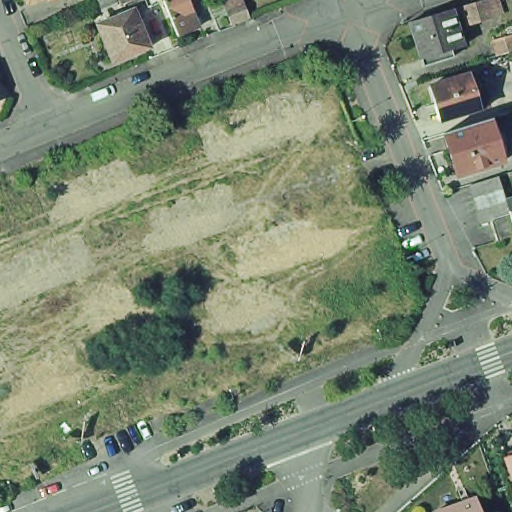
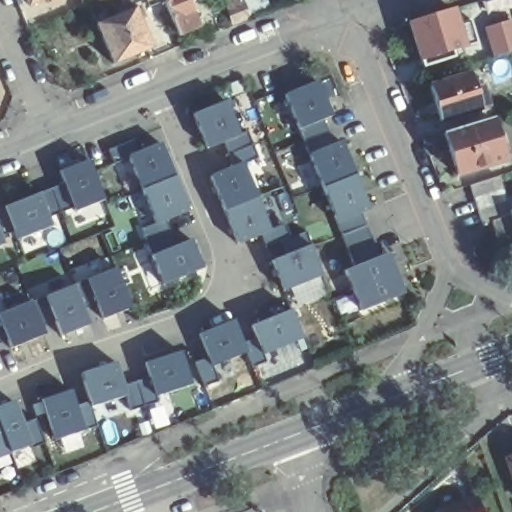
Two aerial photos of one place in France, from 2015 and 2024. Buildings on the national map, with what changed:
unchanged [(26,0),(38,0),(28,4),(26,0)]
unchanged [(98,0),(118,0),(101,7),(98,0)]
unchanged [(120,0),(130,0),(121,3),(120,0)]
unchanged [(164,1),(148,7),(145,0),(189,0),(200,26),(178,35),(164,1)]
unchanged [(242,0),(248,16),(232,22),(224,1),(229,0),(242,0)]
unchanged [(464,5),(482,0),(485,0),(490,15),(468,21),(464,5)]
unchanged [(113,63),(97,25),(135,9),(140,6),(142,12),(137,15),(150,47),(113,63)]
unchanged [(451,50),(453,56),(423,66),(410,22),(451,9),(463,46),(451,50)]
unchanged [(512,35),(512,51),(496,56),(492,41),(512,35)]
unchanged [(440,120),(430,86),(470,74),(475,88),(482,86),(488,106),(440,120)]
new [(359,311),(343,271),(352,267),(347,251),(340,233),(336,223),(310,154),(305,142),(299,130),(286,94),(317,82),(331,116),(321,119),(327,132),(332,145),(341,141),(369,210),(360,214),(364,224),(370,241),(377,257),(387,253),(402,294),(359,311)]
demolished [(499,95),(512,91),(512,112),(505,114),(499,95)]
new [(310,244),(321,276),(282,291),(271,259),(286,255),(280,242),(264,248),(260,236),(238,244),(210,176),(232,167),(227,154),(222,143),(205,150),(191,116),(226,101),(239,134),(247,131),(257,158),(243,163),(270,230),(285,224),(290,237),(305,232),(310,244)]
unchanged [(457,180),(444,137),(491,123),(505,165),(457,180)]
new [(189,240),(201,269),(161,284),(150,256),(145,242),(140,229),(155,224),(128,157),(115,162),(109,150),(132,140),(138,151),(161,143),(189,212),(166,221),(170,232),(175,245),(189,240)]
new [(72,207),(60,212),(48,217),(52,226),(17,240),(12,230),(0,235),(3,244),(0,245),(0,209),(3,207),(38,195),(50,189),(63,185),(59,171),(87,161),(102,201),(74,212),(72,207)]
unchanged [(478,210),(475,198),(470,184),(498,175),(500,180),(502,189),(505,198),(512,196),(512,235),(497,240),(491,220),(482,223),(478,210)]
new [(101,319),(95,303),(81,307),(88,325),(60,337),(53,320),(40,325),(43,335),(9,348),(6,341),(0,343),(0,315),(31,302),(45,297),(74,284),(85,280),(116,269),(130,307),(101,319)]
new [(262,354),(265,361),(251,366),(246,353),(211,366),(217,381),(204,386),(195,362),(207,358),(198,334),(232,320),(241,341),(255,336),(250,325),(290,310),(300,339),(262,354)]
new [(70,391),(75,405),(89,401),(81,373),(116,362),(124,386),(136,381),(147,377),(143,363),(180,351),(190,385),(155,396),(157,402),(130,410),(126,397),(91,408),(95,427),(83,432),(54,442),(40,401),(70,391)]
new [(0,457),(0,406),(12,401),(29,444),(0,457)]
unchanged [(508,456),(506,452),(512,451),(512,474),(506,457),(508,456)]
unchanged [(475,503),(478,512),(451,512),(475,503)]

